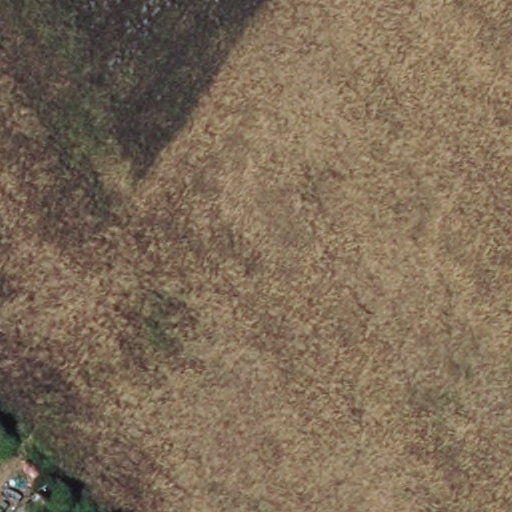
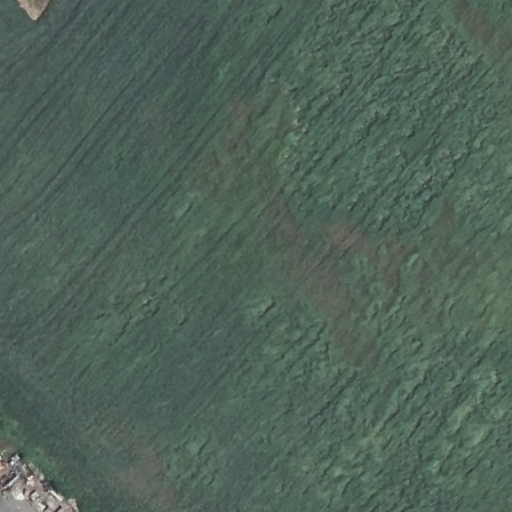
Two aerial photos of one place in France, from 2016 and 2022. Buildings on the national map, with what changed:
unchanged [(28,512),(29,511),(29,512),(28,512)]

